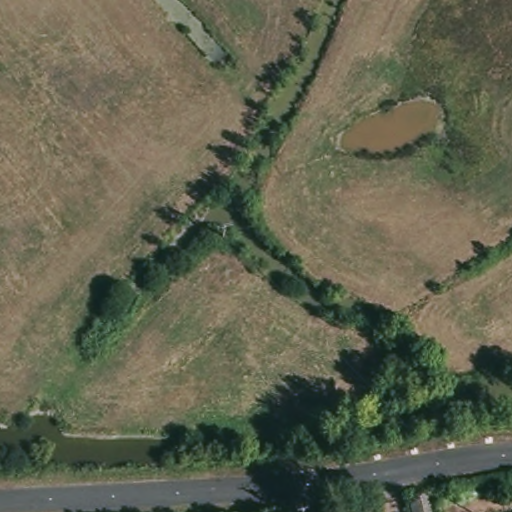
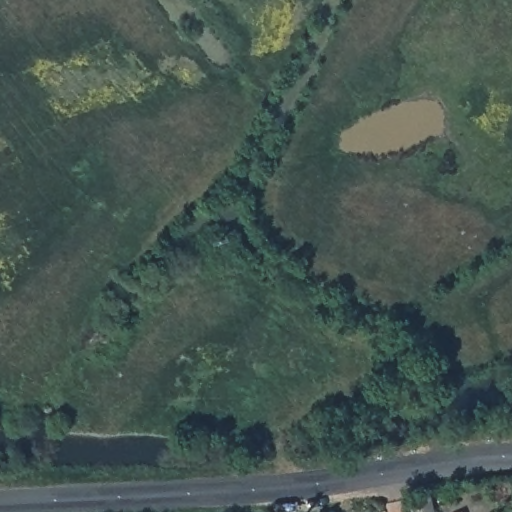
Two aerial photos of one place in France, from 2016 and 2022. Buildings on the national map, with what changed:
unchanged [(427,494),(437,512),(416,512),(411,503),(427,494)]

